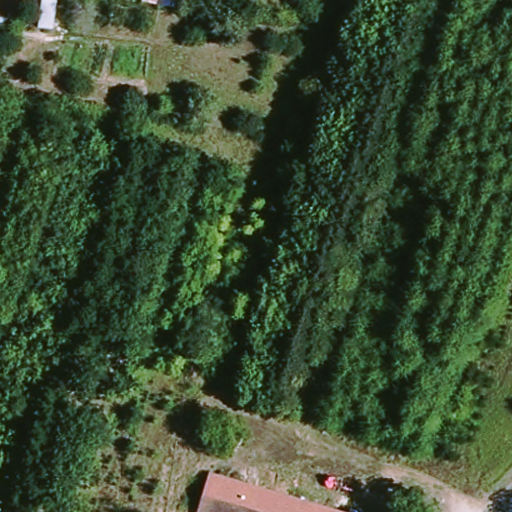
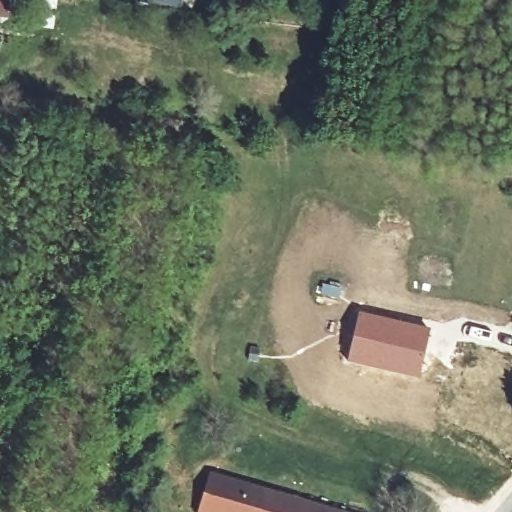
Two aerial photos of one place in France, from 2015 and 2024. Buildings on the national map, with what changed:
unchanged [(0,0),(11,0),(10,24),(0,23),(0,0)]
new [(358,311),(430,328),(418,378),(347,361),(358,311)]
unchanged [(274,494),(279,477),(320,488),(316,504),(342,512),(196,512),(207,475),(274,494)]

